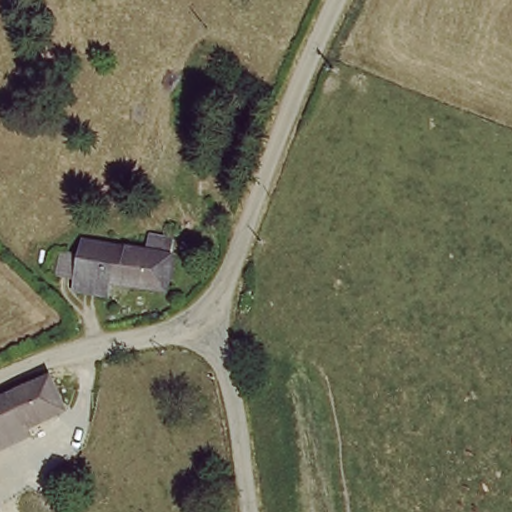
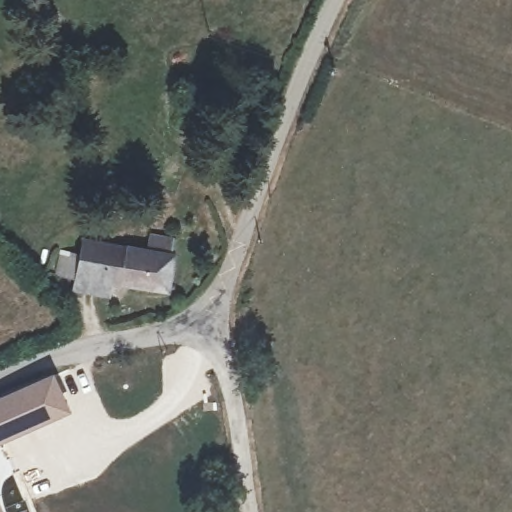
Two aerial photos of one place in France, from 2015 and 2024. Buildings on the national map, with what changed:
unchanged [(111,279),(108,295),(77,288),(85,244),(148,254),(151,236),(176,240),(172,257),(166,290),(111,279)]
unchanged [(65,410),(0,441),(0,400),(51,378),(65,410)]
unchanged [(2,512),(0,512),(0,508),(2,512)]

